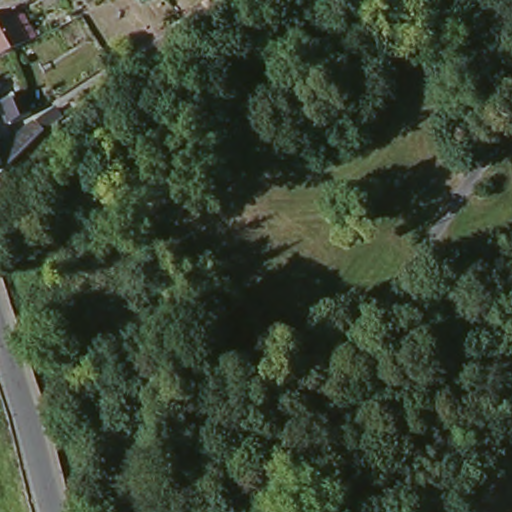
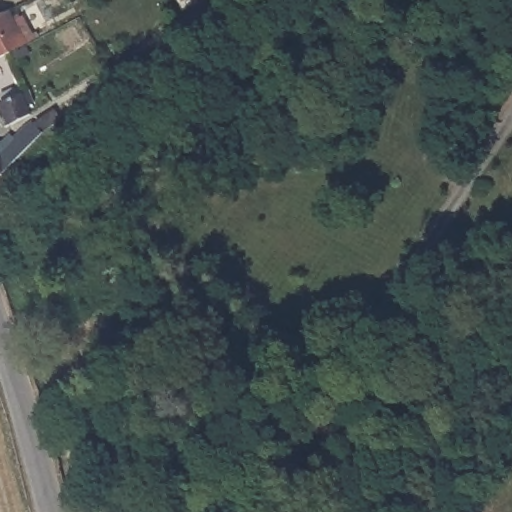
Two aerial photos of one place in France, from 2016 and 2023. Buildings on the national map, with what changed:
unchanged [(3,7),(6,15),(18,11),(28,35),(2,48),(0,49),(0,8),(3,7)]
unchanged [(6,65),(13,81),(0,86),(0,67),(6,65)]
unchanged [(15,89),(31,86),(40,112),(26,115),(1,122),(0,119),(0,94),(15,89)]
unchanged [(2,136),(12,130),(18,135),(32,124),(89,92),(95,100),(46,137),(0,171),(0,172),(0,136),(2,136)]

